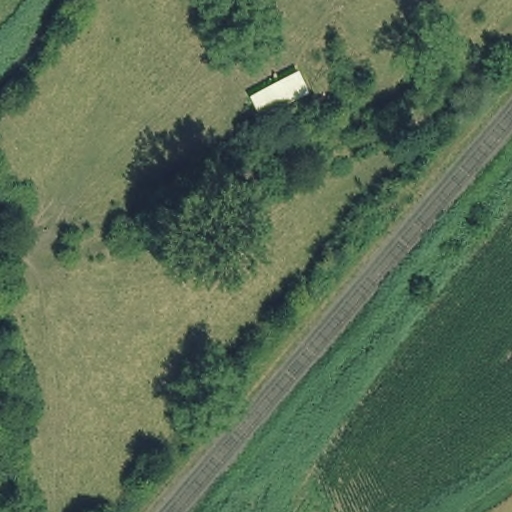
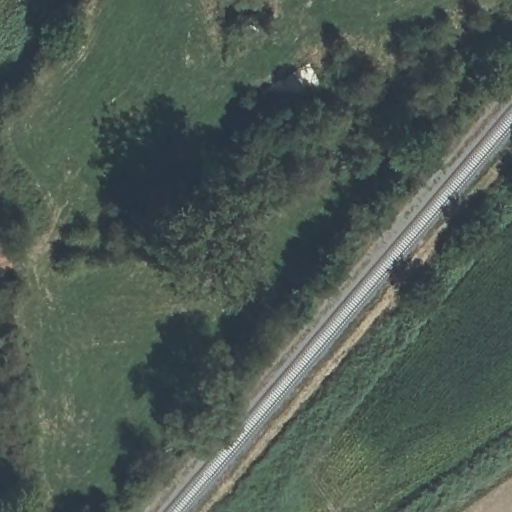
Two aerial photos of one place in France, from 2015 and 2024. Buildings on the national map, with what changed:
unchanged [(260,121),(246,93),(297,67),(312,95),(260,121)]

